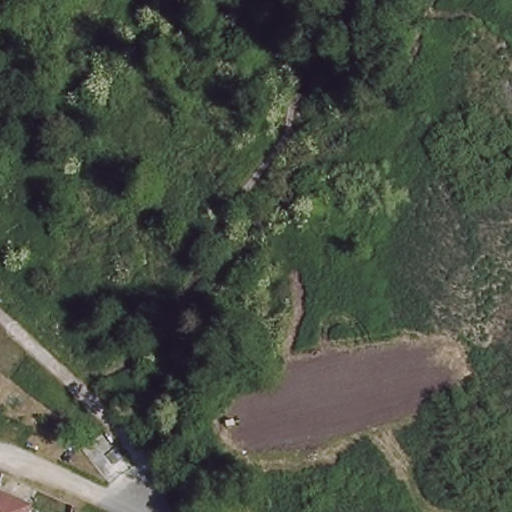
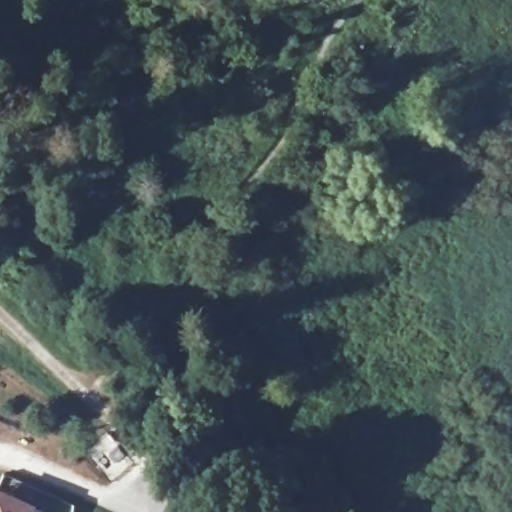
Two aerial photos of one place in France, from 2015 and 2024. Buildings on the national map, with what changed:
unchanged [(27,512),(0,512),(0,487),(33,501),(27,512)]

